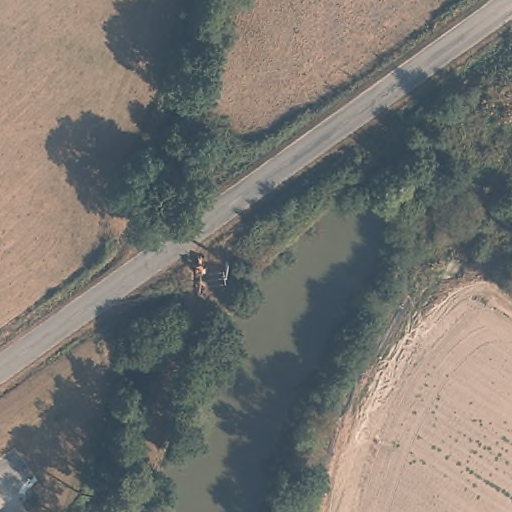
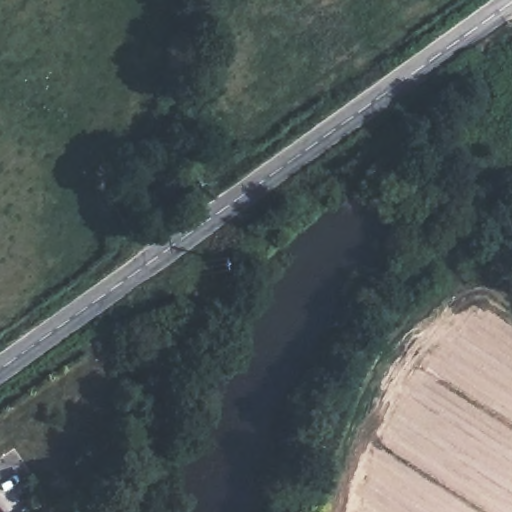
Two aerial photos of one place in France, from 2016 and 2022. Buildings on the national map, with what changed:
unchanged [(32,512),(28,512),(31,510),(32,512)]

